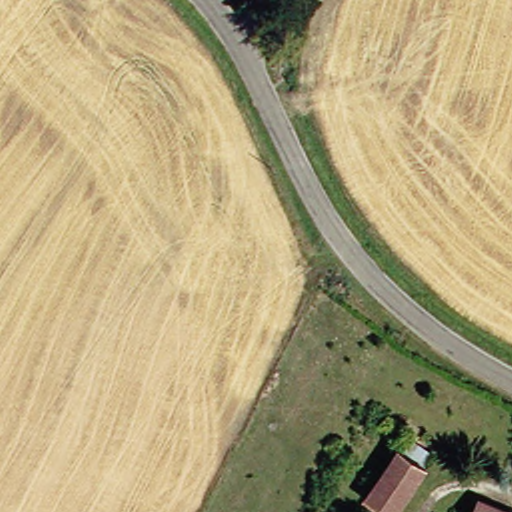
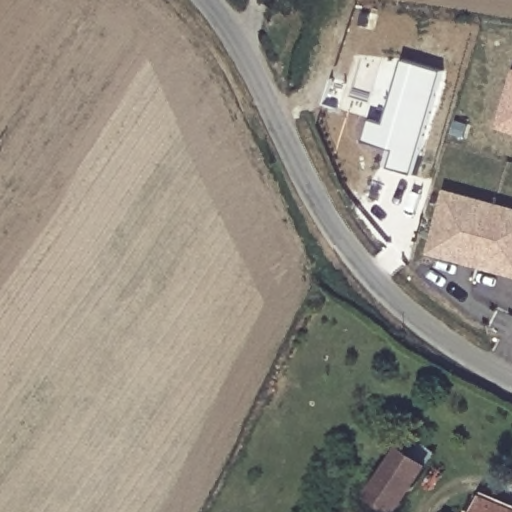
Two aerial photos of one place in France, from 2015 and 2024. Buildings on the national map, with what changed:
new [(413,174),(391,167),(395,151),(365,141),(371,119),(386,123),(407,59),(447,71),(413,174)]
new [(512,75),(512,137),(494,131),(512,75)]
new [(512,213),(512,279),(425,256),(442,194),(512,213)]
unchanged [(400,448),(427,466),(397,512),(394,512),(369,496),(400,448)]
unchanged [(474,499),(505,512),(468,512),(474,499)]

